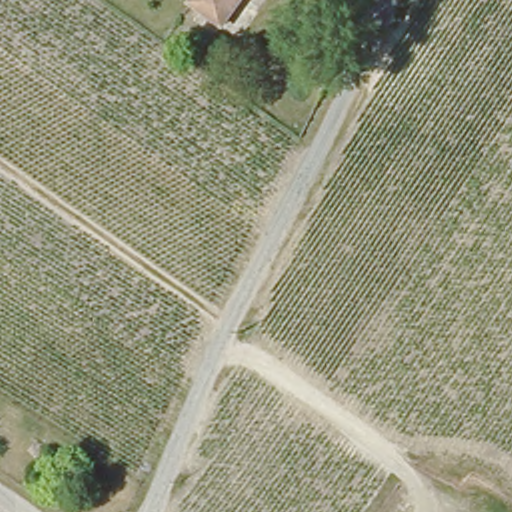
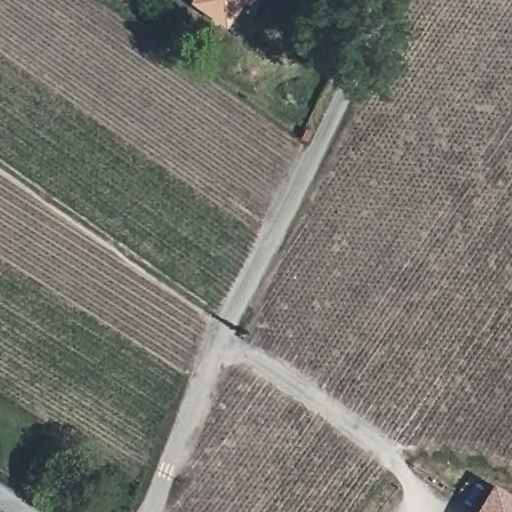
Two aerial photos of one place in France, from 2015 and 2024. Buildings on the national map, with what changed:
unchanged [(237,33),(196,6),(200,0),(258,0),(237,33)]
new [(512,498),(512,512),(484,512),(497,490),(512,498)]

